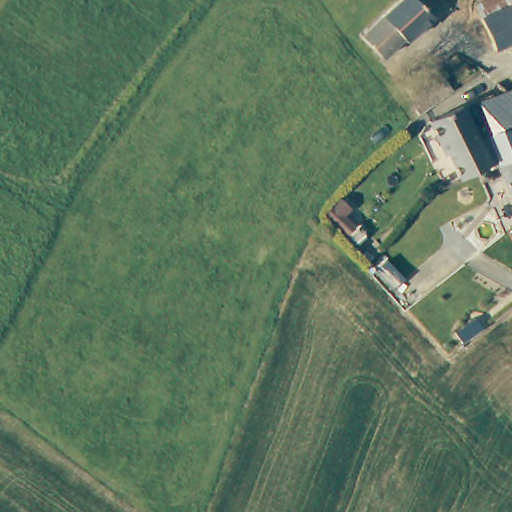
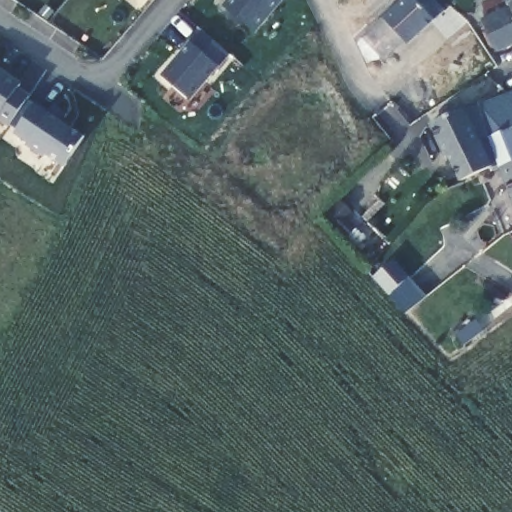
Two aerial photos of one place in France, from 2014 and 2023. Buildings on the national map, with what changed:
new [(224,7),(230,0),(285,0),(257,34),(224,7)]
unchanged [(432,25),(404,51),(400,47),(380,66),(360,42),(408,0),(427,0),(441,16),(432,25)]
unchanged [(496,47),(476,4),(485,0),(512,0),(512,39),(496,47)]
new [(193,100),(163,75),(201,30),(231,54),(193,100)]
new [(19,86),(32,95),(9,127),(0,120),(0,67),(21,81),(19,86)]
unchanged [(503,162),(478,102),(507,89),(512,87),(512,158),(503,162)]
new [(53,113),(55,107),(66,115),(64,119),(87,136),(67,167),(47,155),(45,159),(25,145),(27,141),(16,134),(35,102),(53,113)]
unchanged [(465,103),(495,157),(467,172),(455,149),(450,152),(434,121),(465,103)]
unchanged [(503,162),(512,158),(512,184),(503,162)]
new [(410,312),(394,292),(379,274),(400,257),(415,276),(429,293),(410,312)]

